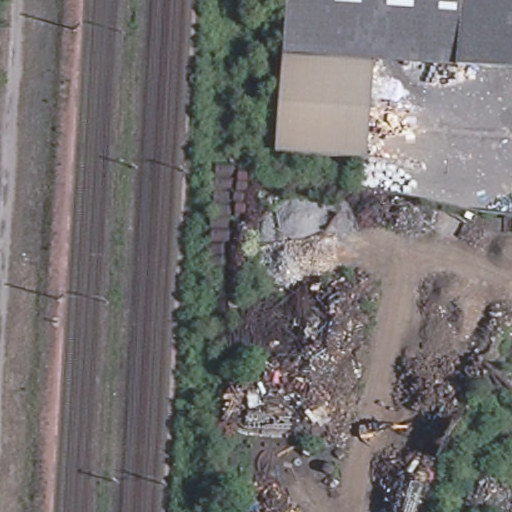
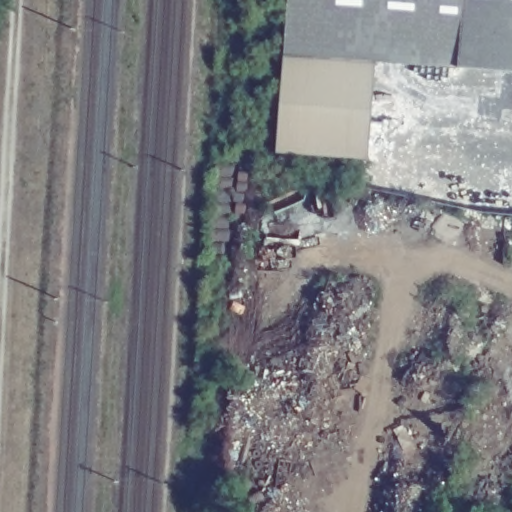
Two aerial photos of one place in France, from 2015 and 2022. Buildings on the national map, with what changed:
unchanged [(286,150),(290,80),(291,62),(296,0),(512,0),(512,75),(383,68),(378,166),(364,165),(298,162),(285,161),(286,150)]

